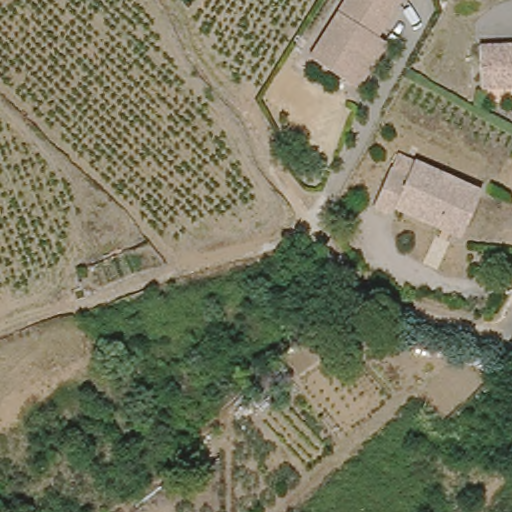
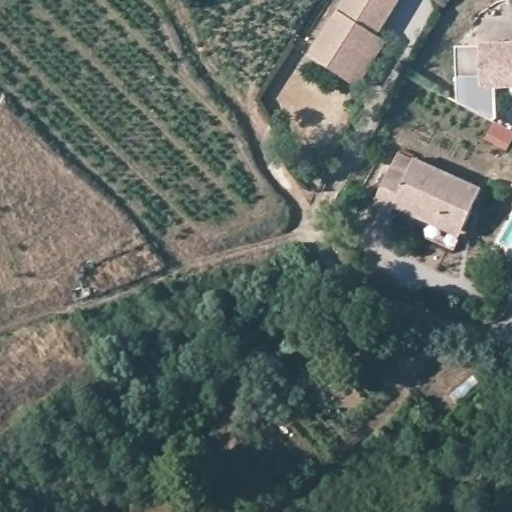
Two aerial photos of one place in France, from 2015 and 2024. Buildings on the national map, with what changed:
unchanged [(345,78),(307,50),(315,39),(341,0),(399,0),(375,34),(385,41),(355,84),(345,78)]
unchanged [(512,45),(512,86),(480,87),(477,46),(512,45)]
unchanged [(440,228),(393,207),(389,215),(370,207),(390,168),(407,174),(415,158),(482,188),(459,237),(452,234),(440,228)]

